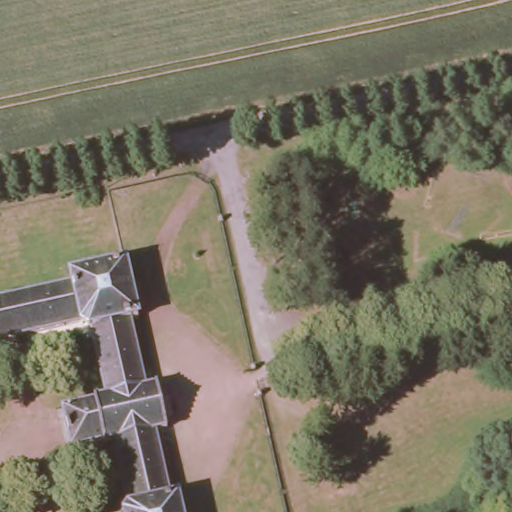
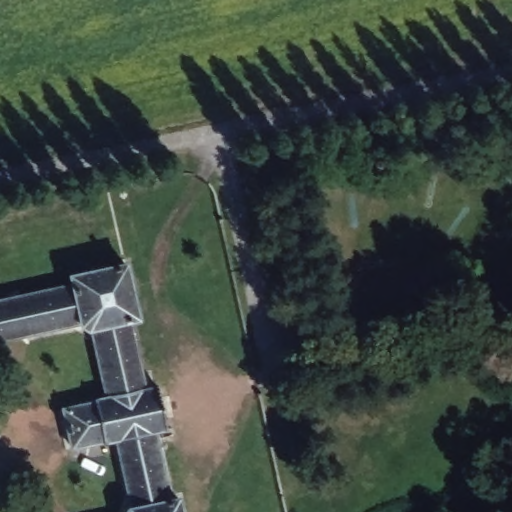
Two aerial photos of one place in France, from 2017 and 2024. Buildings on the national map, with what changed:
unchanged [(117,505),(122,504),(108,441),(62,450),(52,402),(97,392),(82,327),(75,328),(73,320),(0,336),(0,295),(64,280),(62,272),(123,258),(136,315),(130,316),(145,382),(155,379),(165,427),(156,430),(170,495),(178,493),(182,512),(119,512),(117,505)]

